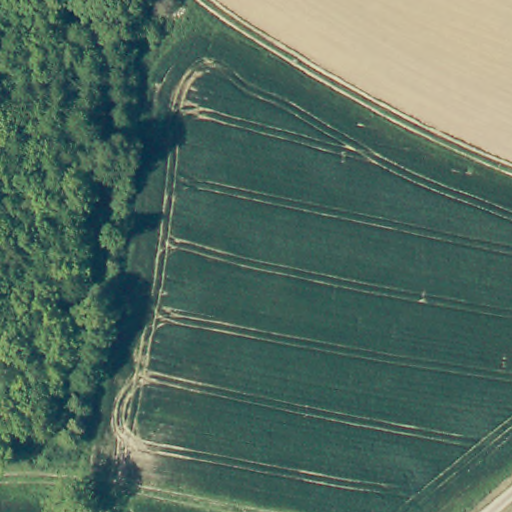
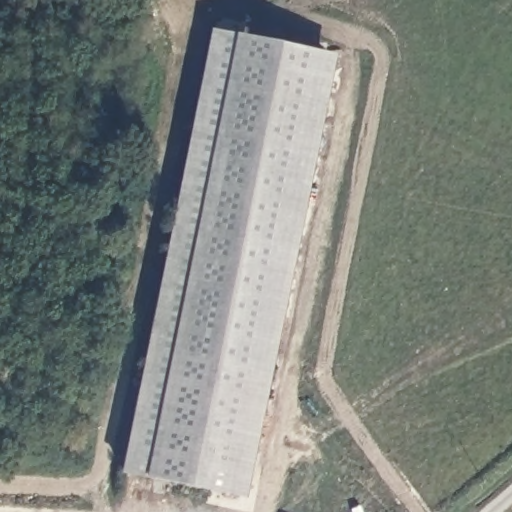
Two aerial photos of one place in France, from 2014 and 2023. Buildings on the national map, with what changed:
new [(248,498),(122,473),(211,28),(338,53),(248,498)]

